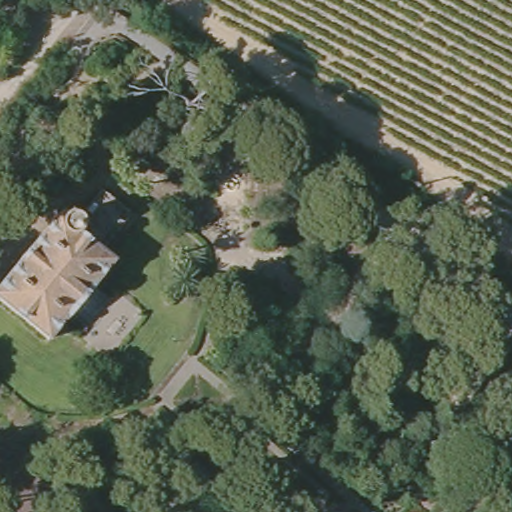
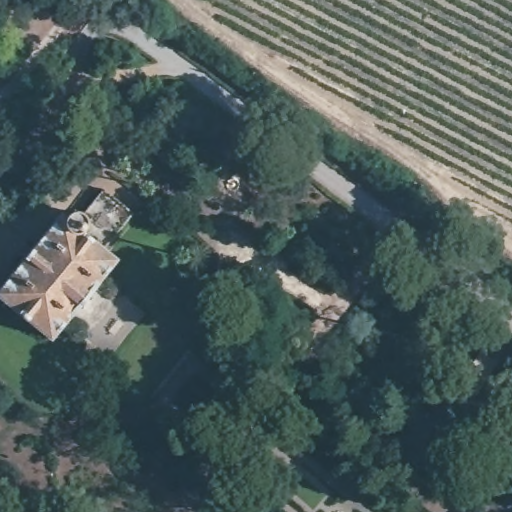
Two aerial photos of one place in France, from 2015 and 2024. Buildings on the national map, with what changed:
unchanged [(58,345),(3,298),(68,219),(73,223),(74,222),(75,221),(77,220),(78,220),(80,219),(82,219),(83,219),(85,219),(86,220),(88,220),(89,221),(90,222),(104,204),(136,230),(113,257),(124,266),(58,345)]

